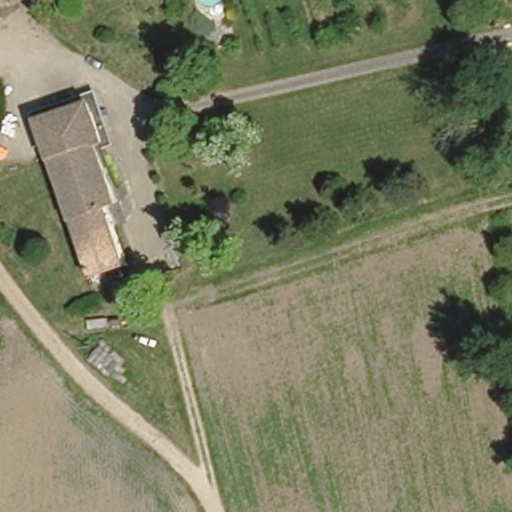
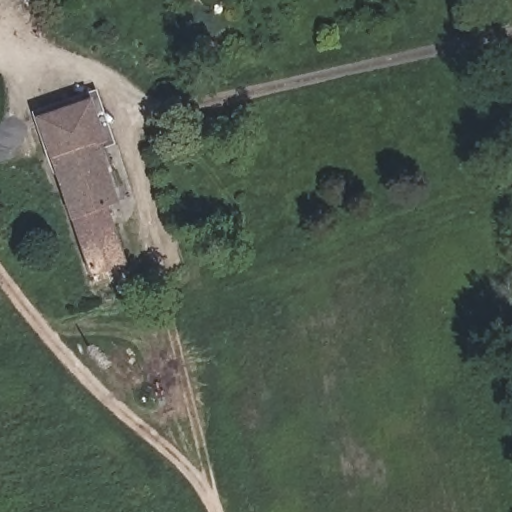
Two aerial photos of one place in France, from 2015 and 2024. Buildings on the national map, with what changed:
unchanged [(106,267),(93,272),(39,111),(89,95),(100,129),(95,131),(114,190),(106,193),(127,255),(104,263),(106,267)]

